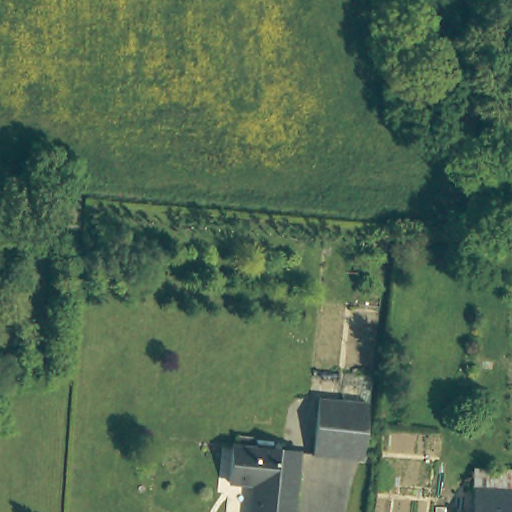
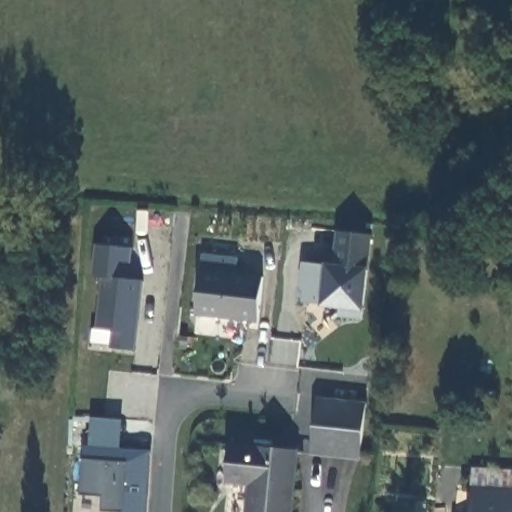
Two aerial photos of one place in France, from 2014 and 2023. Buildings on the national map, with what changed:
new [(326,264),(326,263),(333,264),(337,232),(373,235),(368,268),(365,310),(362,319),(339,317),(339,309),(321,307),(322,302),(302,302),(304,293),(299,287),(302,262),(326,264)]
new [(137,350),(111,348),(111,330),(97,328),(102,278),(93,277),(97,245),(132,249),(128,279),(143,281),(137,350)]
new [(238,258),(236,273),(264,276),(258,323),(196,315),(204,253),(238,258)]
unchanged [(368,400),(360,456),(313,451),(322,394),(368,400)]
new [(122,421),(120,448),(152,451),(147,512),(113,512),(102,511),(103,497),(80,494),(85,445),(89,445),(91,417),(122,421)]
unchanged [(300,454),(292,512),(251,512),(254,485),(233,482),(236,445),(300,454)]
unchanged [(473,467),(512,469),(512,512),(469,512),(473,467)]

